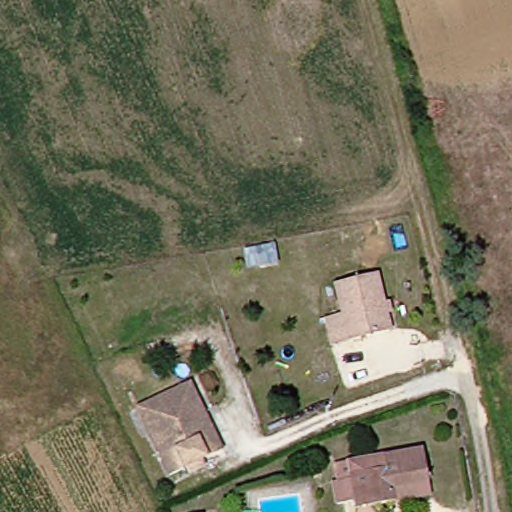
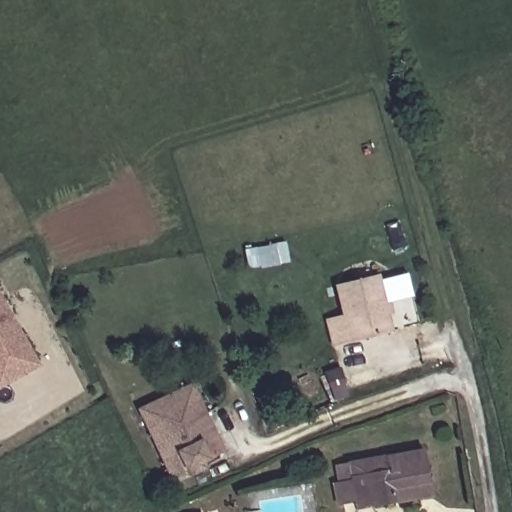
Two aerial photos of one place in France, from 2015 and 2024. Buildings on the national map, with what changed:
unchanged [(338,345),(332,319),(348,315),(341,286),(382,275),(396,331),(338,345)]
new [(38,365),(17,376),(0,386),(0,298),(38,365)]
unchanged [(176,478),(143,411),(188,390),(197,385),(220,435),(229,453),(176,478)]
unchanged [(360,510),(358,501),(341,505),(338,482),(335,470),(353,467),(352,463),(427,450),(433,483),(435,496),(399,503),(360,510)]

